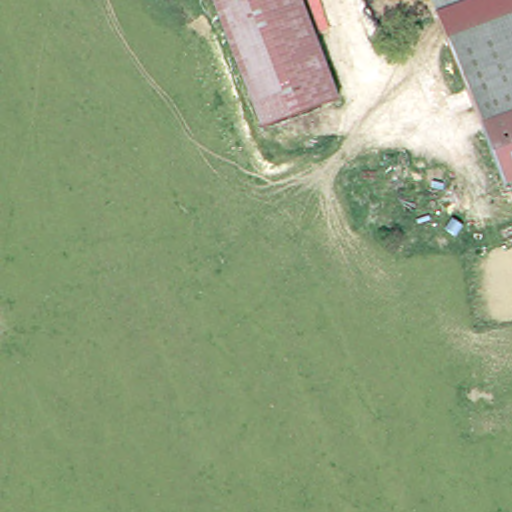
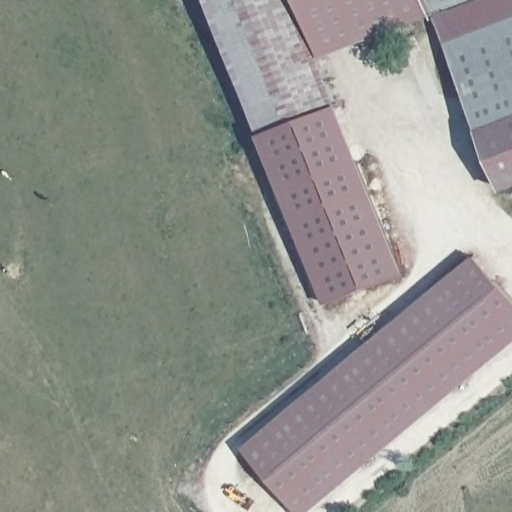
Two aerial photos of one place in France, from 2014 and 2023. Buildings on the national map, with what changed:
unchanged [(324,64),(340,107),(265,136),(249,93),(213,0),(299,0),(324,64)]
new [(440,19),(430,19),(322,60),(299,0),(432,0),(440,19)]
unchanged [(486,1),(440,19),(432,0),(486,0),(486,1)]
new [(486,1),(487,0),(512,0),(512,26),(453,50),(440,19),(486,1)]
unchanged [(486,1),(486,0),(487,0),(486,1)]
unchanged [(510,195),(453,50),(512,26),(512,194),(510,195)]
new [(405,275),(328,304),(265,136),(340,107),(405,275)]
new [(312,512),(296,512),(245,450),(476,257),(512,300),(512,345),(312,512)]

